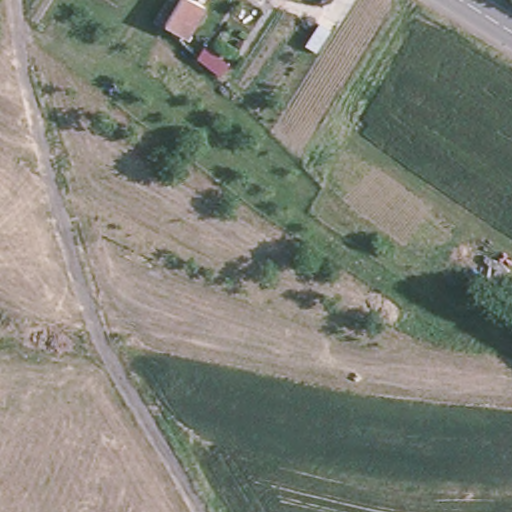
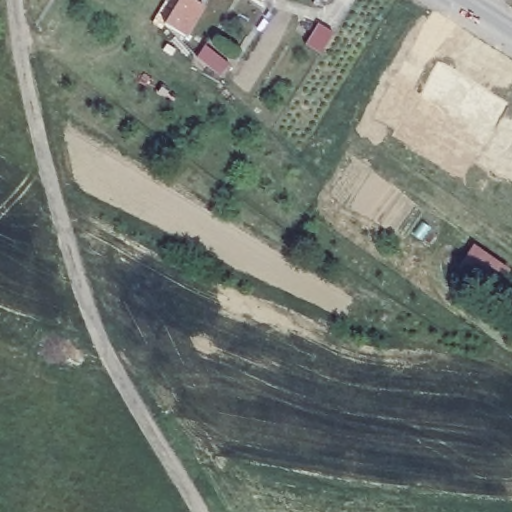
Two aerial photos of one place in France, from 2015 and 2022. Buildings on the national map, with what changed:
unchanged [(185,37),(164,24),(179,0),(193,0),(204,6),(185,37)]
unchanged [(329,31),(316,51),(305,45),(318,24),(329,31)]

